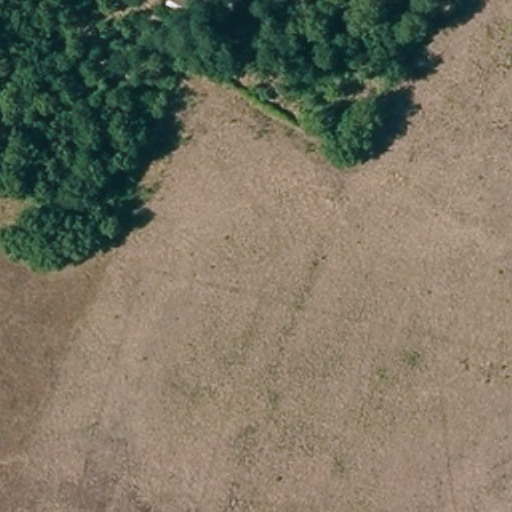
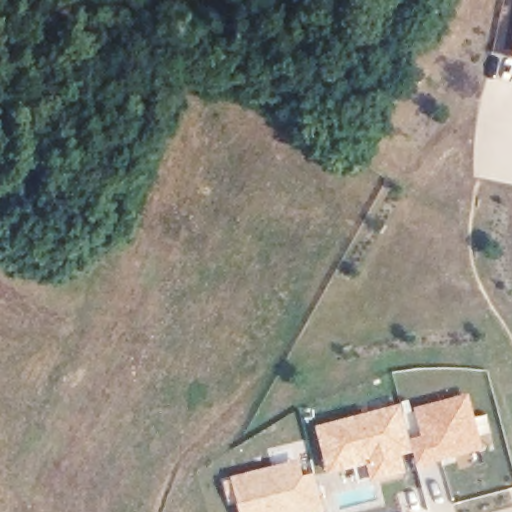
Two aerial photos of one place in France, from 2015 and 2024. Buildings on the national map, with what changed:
new [(456,453),(434,459),(435,464),(419,468),(412,442),(427,438),(419,409),(467,397),(485,462),(461,468),(456,453)]
new [(329,474),(316,427),(402,405),(412,452),(403,454),(406,473),(372,481),(368,464),(329,474)]
new [(233,477),(300,461),(304,476),(316,474),(325,512),(242,512),(233,477)]

